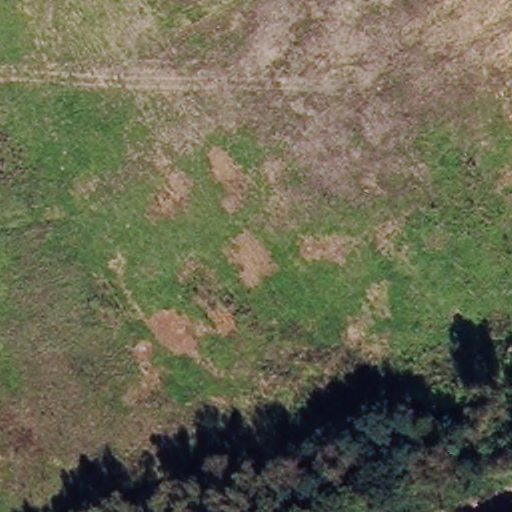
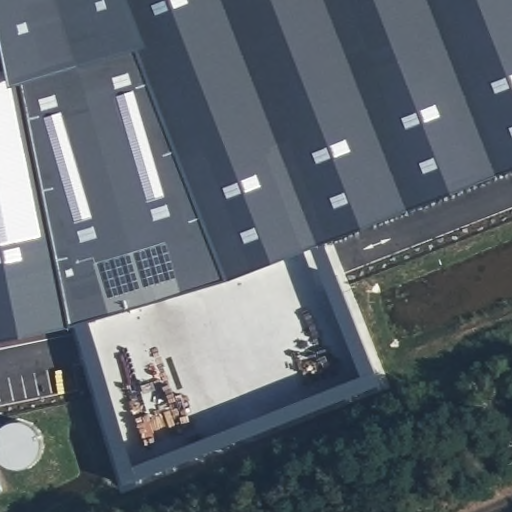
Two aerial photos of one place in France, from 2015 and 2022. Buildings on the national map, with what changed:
new [(512,170),(228,281),(72,327),(0,341),(0,0),(512,0),(512,170)]

